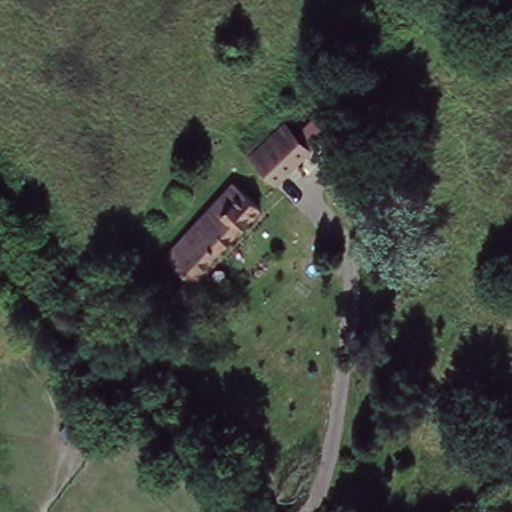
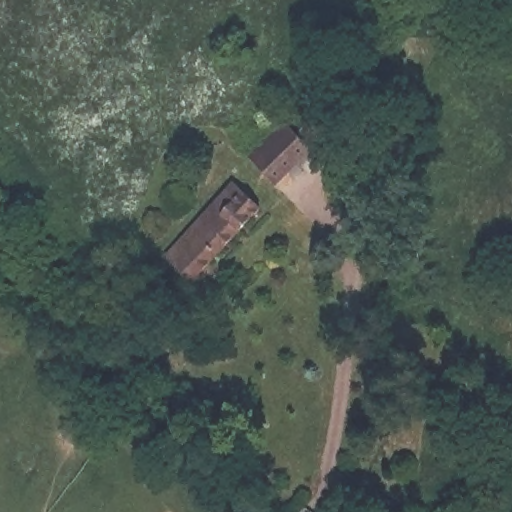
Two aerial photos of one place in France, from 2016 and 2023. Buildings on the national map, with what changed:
unchanged [(278,182),(249,155),(283,121),(296,133),(315,115),(331,132),(278,182)]
unchanged [(260,206),(192,283),(168,262),(235,186),(244,193),(260,206)]

